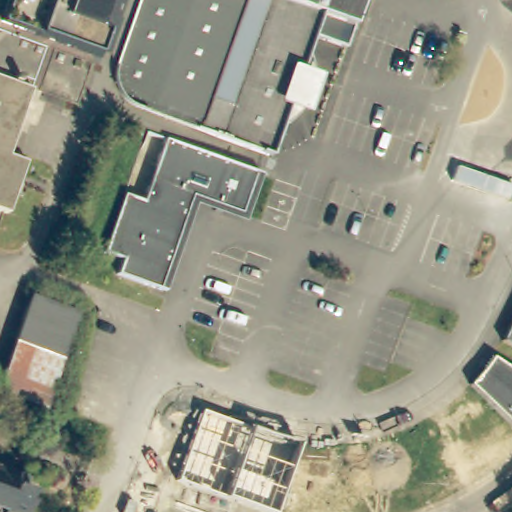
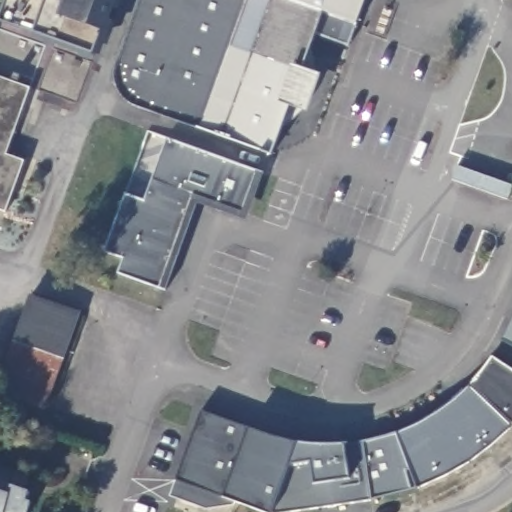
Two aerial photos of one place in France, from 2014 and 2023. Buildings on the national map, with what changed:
unchanged [(2,22),(10,0),(117,0),(98,56),(2,22)]
unchanged [(130,100),(120,92),(117,88),(115,83),(113,78),(113,72),(113,67),(114,62),(136,0),(191,0),(152,108),(130,100)]
unchanged [(152,108),(191,0),(243,0),(197,124),(152,108)]
unchanged [(197,124),(243,0),(260,0),(213,130),(197,124)]
unchanged [(260,147),(216,131),(213,130),(260,0),(300,0),(311,4),(260,147)]
unchanged [(312,30),(269,151),(260,147),(311,4),(300,0),(362,0),(347,42),(312,30)]
unchanged [(8,154),(26,161),(8,212),(0,210),(0,76),(31,88),(8,154)]
unchanged [(163,133),(228,157),(259,167),(243,210),(194,192),(187,212),(160,285),(115,268),(120,254),(102,247),(119,200),(123,189),(141,195),(163,133)]
new [(458,166),(512,185),(512,192),(509,200),(453,179),(458,166)]
unchanged [(0,392),(0,380),(30,298),(78,316),(44,408),(0,392)]
unchanged [(504,328),(512,313),(512,348),(504,344),(498,341),(504,328)]
unchanged [(477,366),(478,365),(489,350),(512,365),(512,421),(483,393),(467,378),(477,366)]
new [(504,433),(467,464),(425,486),(392,495),(371,500),(311,507),(287,511),(281,512),(273,512),(297,444),(319,446),(344,445),(365,441),(400,432),(467,378),(483,393),(512,421),(512,422),(504,433)]
unchanged [(201,411),(250,428),(297,444),(273,512),(267,512),(223,497),(174,480),(201,411)]
unchanged [(25,498),(29,499),(25,512),(11,512),(2,509),(1,512),(0,512),(0,464),(24,472),(20,487),(28,488),(25,498)]

